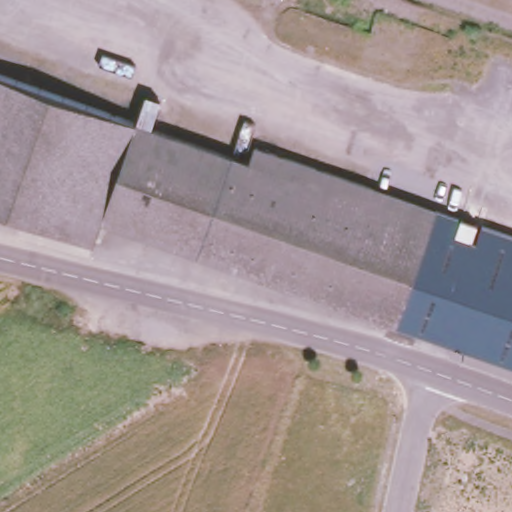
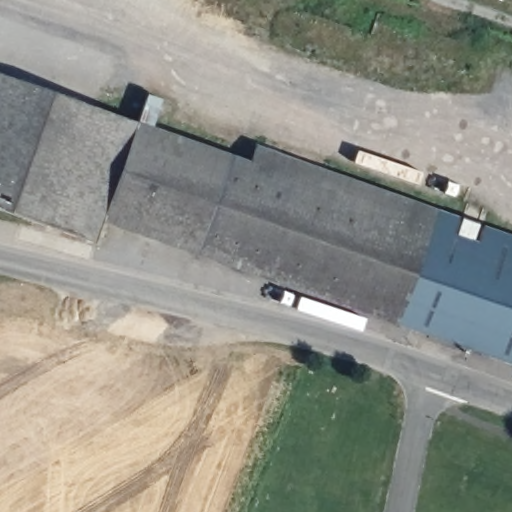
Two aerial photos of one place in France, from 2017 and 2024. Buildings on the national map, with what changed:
unchanged [(136,126),(141,108),(159,114),(154,134),(251,166),(255,152),(512,243),(512,370),(105,224),(97,246),(0,213),(0,78),(136,126)]

